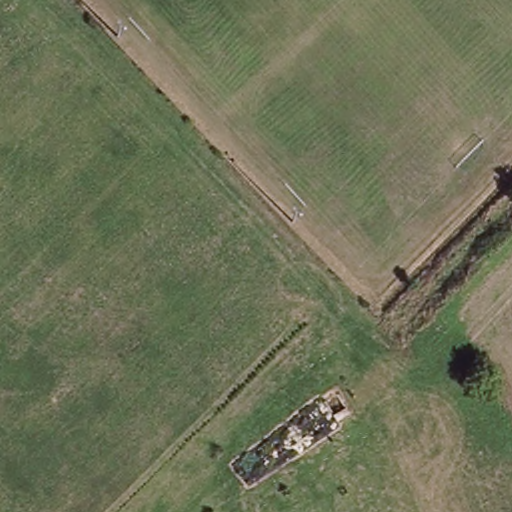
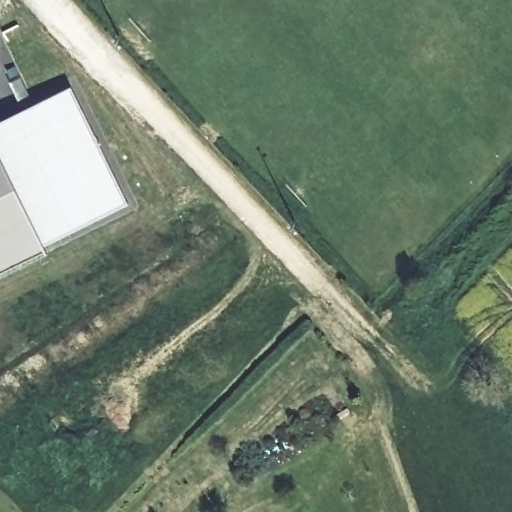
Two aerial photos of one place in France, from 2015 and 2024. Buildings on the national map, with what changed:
new [(127,204),(45,244),(47,250),(0,273),(0,121),(70,87),(127,204)]

